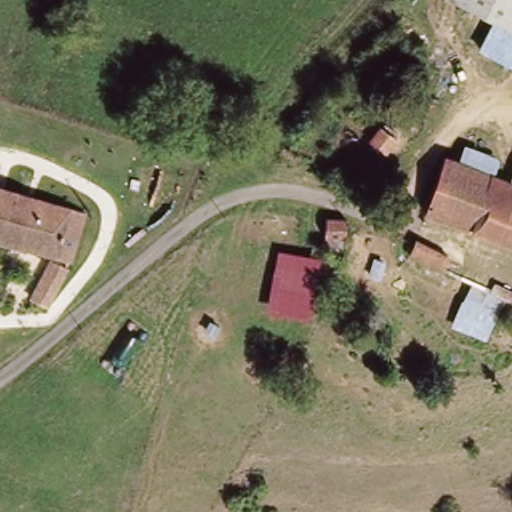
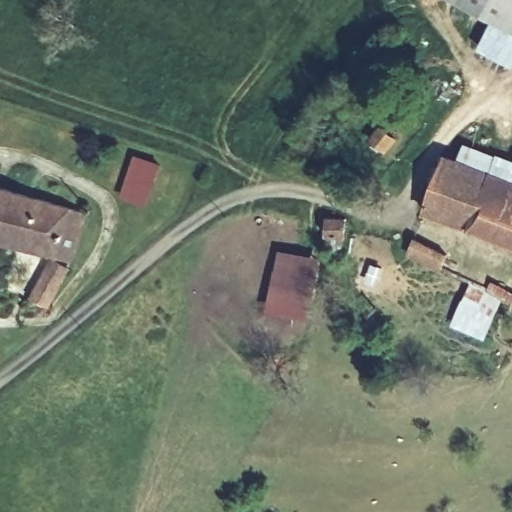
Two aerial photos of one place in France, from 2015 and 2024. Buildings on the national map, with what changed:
unchanged [(460,0),(466,0),(465,3),(460,0)]
unchanged [(465,3),(466,0),(512,0),(512,26),(511,26),(465,3)]
unchanged [(512,32),(512,67),(478,49),(492,22),(512,32)]
unchanged [(399,137),(386,154),(368,139),(379,124),(399,137)]
unchanged [(498,156),(490,179),(456,168),(464,145),(498,156)]
new [(159,166),(146,207),(119,197),(133,156),(159,166)]
unchanged [(512,245),(424,214),(442,163),(512,187),(512,245)]
unchanged [(512,187),(507,185),(512,170),(512,187)]
unchanged [(88,224),(69,271),(0,244),(0,191),(88,224)]
unchanged [(349,220),(346,246),(323,240),(323,215),(349,220)]
unchanged [(414,240),(448,258),(441,273),(407,255),(414,240)]
unchanged [(320,260),(308,320),(266,312),(277,252),(320,260)]
unchanged [(66,279),(50,314),(34,307),(51,272),(66,279)]
unchanged [(462,304),(471,285),(487,289),(494,282),(512,292),(512,308),(506,306),(498,318),(486,339),(452,324),(462,304)]

